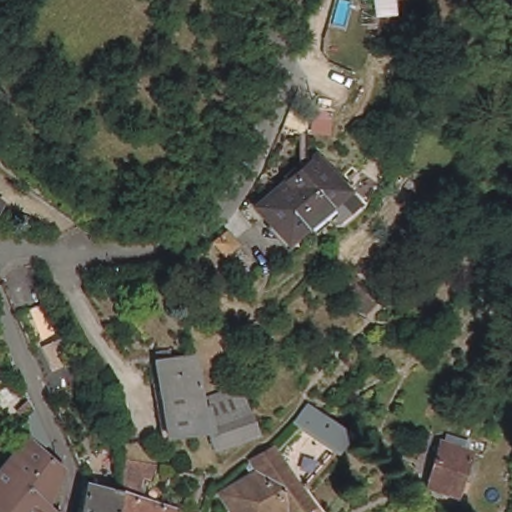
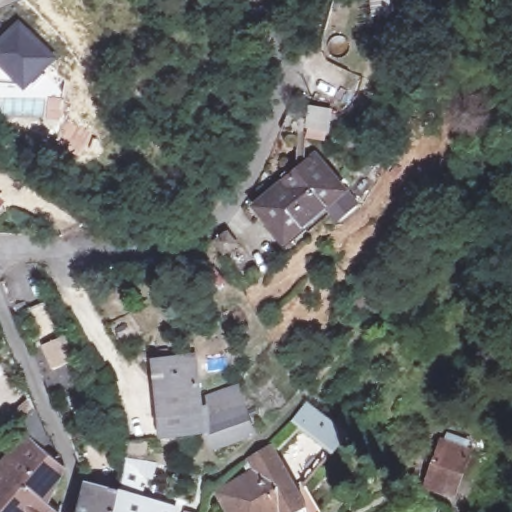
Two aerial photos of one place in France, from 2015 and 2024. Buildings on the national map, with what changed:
new [(3,22),(10,29),(18,21),(58,59),(26,89),(0,86),(0,23),(3,22)]
unchanged [(273,223),(259,207),(319,154),(348,186),(292,233),(286,238),(273,223)]
unchanged [(0,204),(0,193),(5,197),(0,204)]
unchanged [(376,297),(364,314),(345,301),(352,278),(376,297)]
unchanged [(257,430),(217,445),(213,427),(170,436),(156,363),(197,355),(206,395),(238,383),(257,430)]
unchanged [(353,431),(343,446),(338,453),(304,425),(299,421),(307,412),(315,404),(353,431)]
unchanged [(40,443),(64,463),(49,512),(0,512),(0,460),(22,435),(17,422),(26,417),(23,408),(33,405),(48,437),(40,443)]
unchanged [(461,442),(463,436),(474,440),(472,446),(476,448),(461,491),(433,481),(448,437),(461,442)]
unchanged [(261,483),(258,475),(284,456),(287,462),(311,502),(321,497),(330,512),(234,512),(229,505),(261,483)]
unchanged [(126,460),(155,465),(153,475),(141,474),(139,486),(123,482),(126,460)]
unchanged [(125,493),(122,512),(84,512),(90,484),(125,493)]
unchanged [(179,506),(178,512),(122,512),(125,493),(179,506)]

